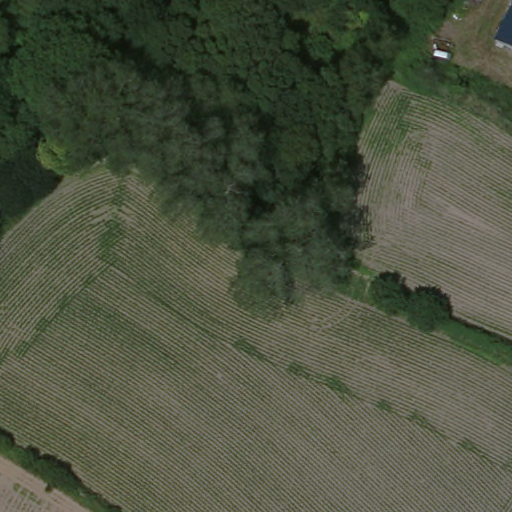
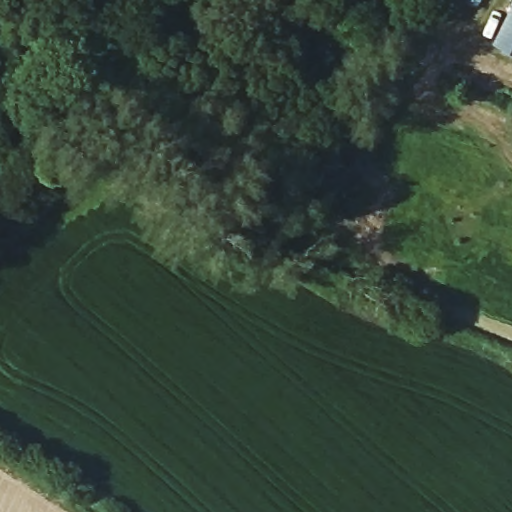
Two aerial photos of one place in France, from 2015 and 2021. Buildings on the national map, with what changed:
unchanged [(512,0),(512,57),(486,45),(511,0),(512,0)]

